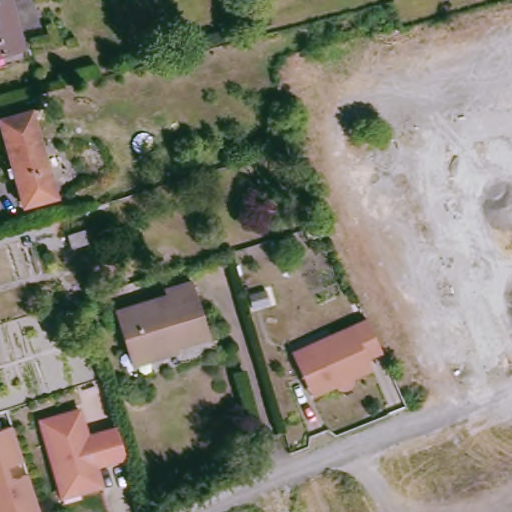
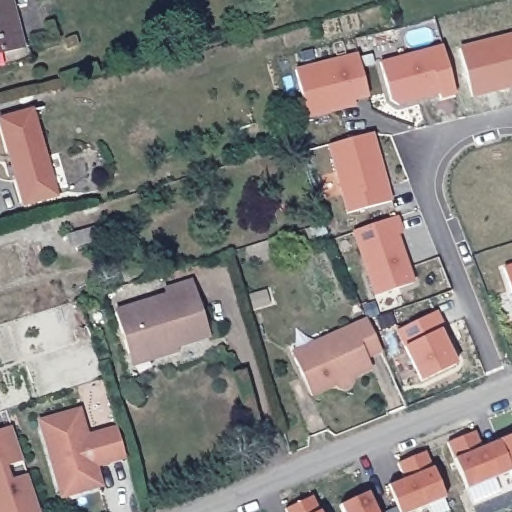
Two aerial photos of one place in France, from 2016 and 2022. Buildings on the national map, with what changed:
unchanged [(0,57),(0,0),(10,0),(21,52),(0,57)]
new [(462,47),(512,33),(512,84),(475,95),(462,47)]
new [(442,45),(457,96),(439,101),(437,96),(397,105),(391,99),(380,61),(442,45)]
new [(296,69),(357,54),(369,99),(356,102),(357,107),(310,117),(296,69)]
unchanged [(50,197),(22,204),(2,117),(29,111),(50,197)]
new [(392,201),(345,212),(327,146),(373,133),(392,201)]
new [(376,297),(352,233),(398,218),(404,234),(399,236),(414,281),(376,297)]
new [(512,265),(512,293),(503,268),(512,265)]
unchanged [(209,338),(184,347),(185,351),(161,358),(157,350),(129,359),(117,317),(169,300),(167,293),(192,285),(209,338)]
new [(444,330),(441,332),(456,365),(419,382),(395,332),(437,312),(444,330)]
unchanged [(362,340),(370,351),(367,352),(364,353),(370,366),(355,373),(356,377),(355,381),(353,385),(351,387),(348,390),(345,391),(342,392),(337,391),(335,390),(332,387),(330,384),(316,390),(310,372),(301,374),(294,354),(349,329),(347,325),(354,323),(362,340)]
unchanged [(59,487),(41,421),(80,411),(87,437),(117,429),(120,436),(126,457),(95,466),(92,472),(97,487),(77,492),(62,497),(59,487)]
unchanged [(0,512),(0,429),(14,425),(41,512),(0,512)]
new [(511,471),(467,489),(449,443),(472,433),(480,447),(512,435),(512,474),(511,471)]
new [(407,512),(399,512),(390,487),(407,480),(398,463),(424,452),(442,497),(407,512)]
new [(343,512),(340,505),(366,493),(374,512),(343,512)]
new [(319,512),(288,512),(286,508),(311,498),(319,512)]

